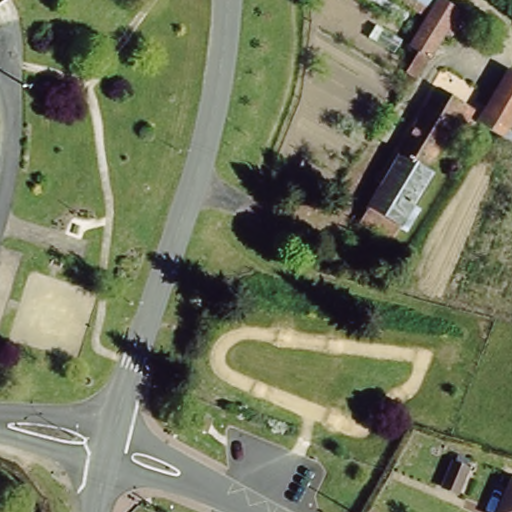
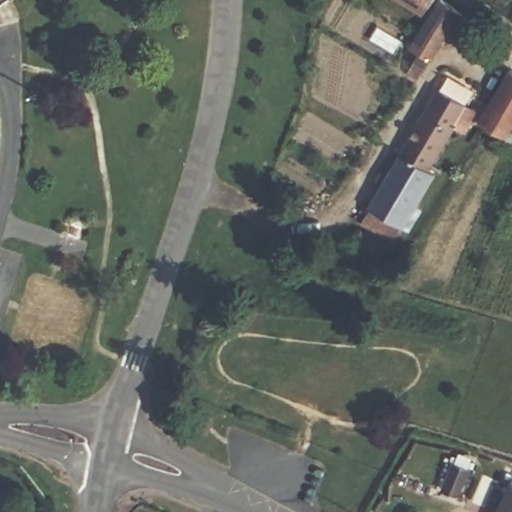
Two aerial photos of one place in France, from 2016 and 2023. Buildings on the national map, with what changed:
unchanged [(436,0),(437,0),(460,13),(448,33),(442,29),(414,77),(403,70),(416,49),(409,45),(411,41),(426,17),(436,0)]
unchanged [(480,119),(484,112),(510,67),(512,69),(512,124),(506,134),(480,119)]
unchanged [(362,220),(371,206),(383,185),(441,86),(478,108),(465,130),(454,123),(429,167),(435,171),(416,204),(403,225),(402,224),(393,239),(362,220)]
unchanged [(467,467),(456,492),(441,485),(452,460),(467,467)]
unchanged [(512,477),(512,512),(498,512),(497,511),(512,477)]

